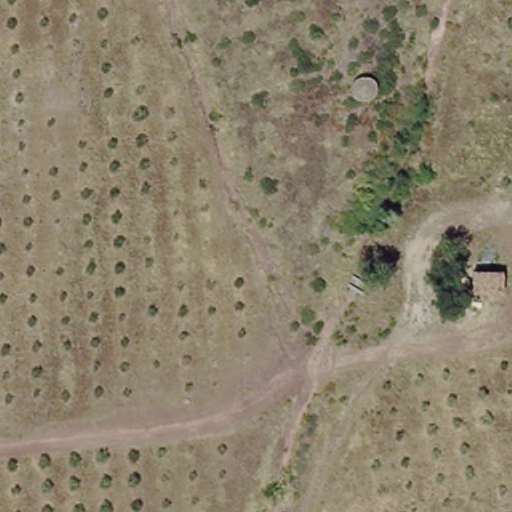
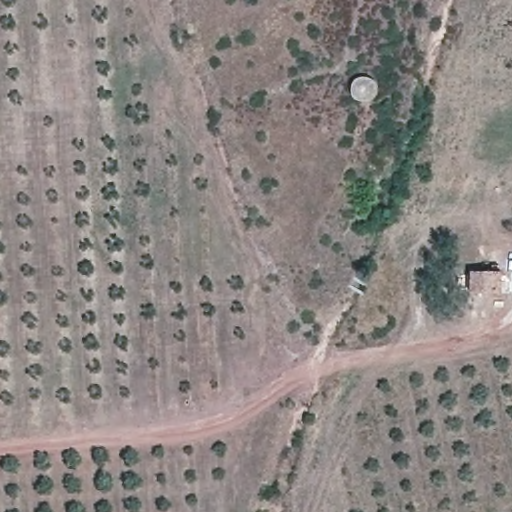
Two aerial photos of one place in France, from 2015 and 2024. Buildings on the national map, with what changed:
unchanged [(358,104),(351,99),(350,94),(350,86),(355,79),(361,75),(369,76),(377,82),(379,90),(378,96),(374,101),(366,105),(358,104)]
unchanged [(464,277),(497,277),(497,301),(466,302),(464,277)]

